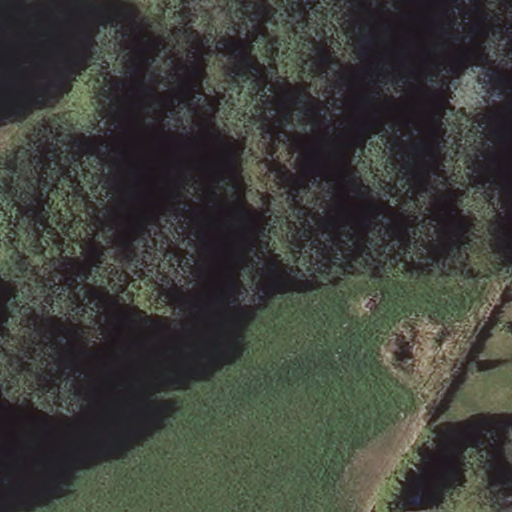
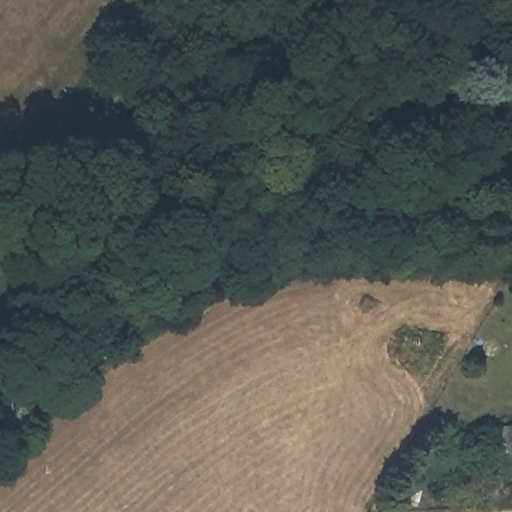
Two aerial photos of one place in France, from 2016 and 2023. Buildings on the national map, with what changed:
unchanged [(406,479),(415,480),(412,502),(402,500),(406,479)]

